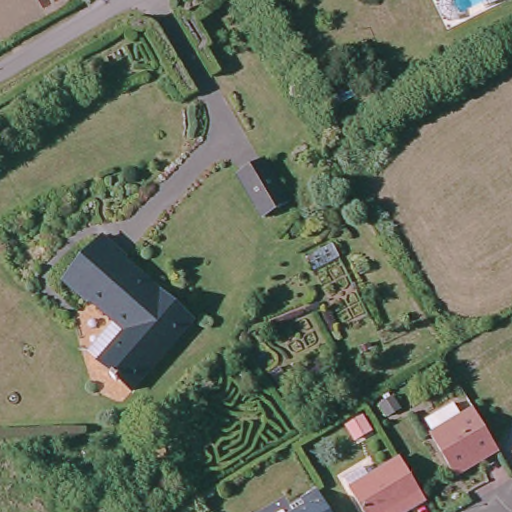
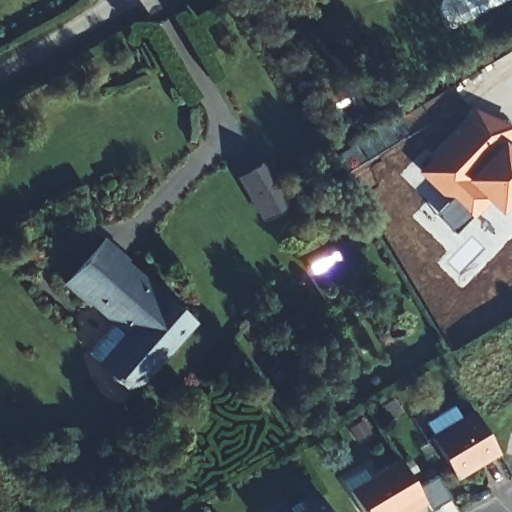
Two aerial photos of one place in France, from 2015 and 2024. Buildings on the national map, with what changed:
new [(505,0),(454,26),(450,17),(441,0),(505,0)]
new [(501,212),(489,201),(473,218),(419,170),(470,117),(474,107),(512,124),(512,134),(507,144),(512,148),(512,201),(501,212)]
unchanged [(264,162),(288,204),(264,217),(242,176),(261,164),(264,162)]
unchanged [(125,255),(124,256),(194,317),(132,387),(97,358),(100,356),(90,348),(113,320),(89,297),(86,298),(64,278),(102,235),(125,255)]
unchanged [(452,473),(428,433),(431,432),(424,419),(452,402),(459,416),(470,408),(494,448),(477,458),(470,463),(452,473)]
unchanged [(406,512),(400,512),(399,510),(394,512),(369,512),(347,477),(367,465),(374,475),(405,456),(431,497),(406,512)]
unchanged [(291,502),(289,498),(315,483),(332,512),(276,512),(291,502)]

